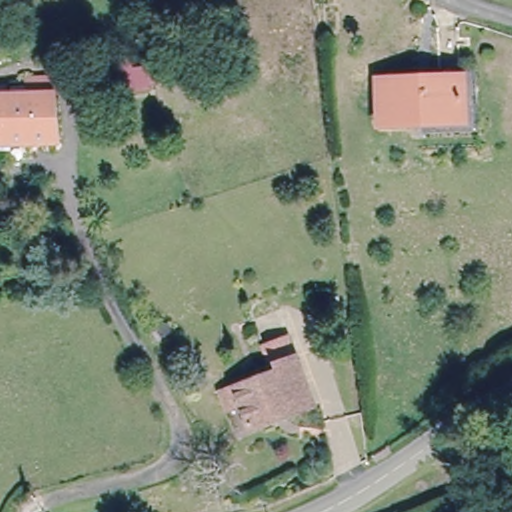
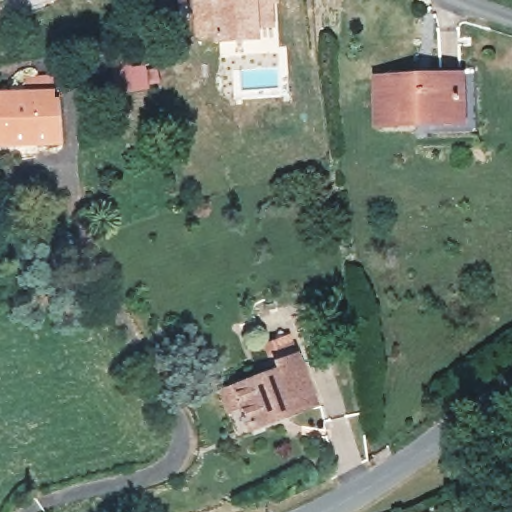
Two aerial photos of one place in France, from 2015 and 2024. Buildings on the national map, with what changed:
new [(276,0),(276,2),(279,27),(261,29),(262,42),(260,42),(259,41),(225,45),(225,46),(222,46),(221,37),(202,40),(197,5),(217,2),(217,0),(276,0)]
unchanged [(147,65),(150,89),(116,94),(112,70),(147,65)]
unchanged [(460,76),(462,120),(381,122),(380,79),(460,76)]
unchanged [(55,140),(0,141),(0,95),(54,94),(55,140)]
unchanged [(222,390),(237,385),(282,370),(280,361),(299,355),(315,405),(251,426),(245,408),(230,413),(222,390)]

